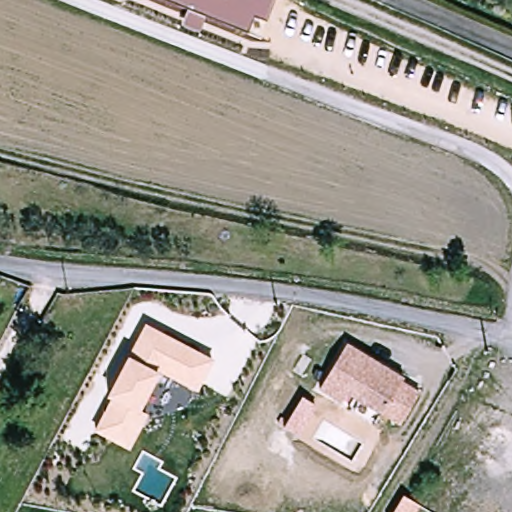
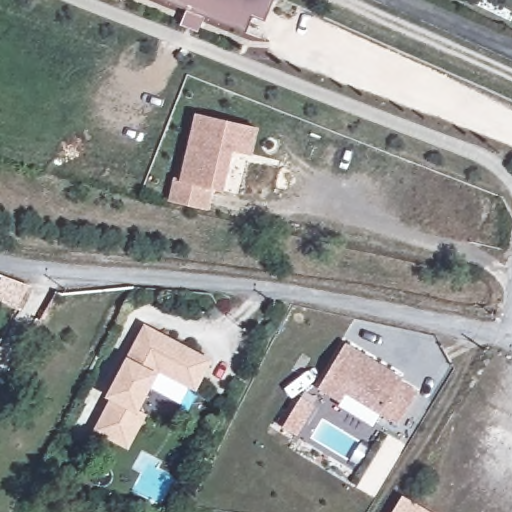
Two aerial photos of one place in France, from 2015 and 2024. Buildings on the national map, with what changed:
unchanged [(268,21),(253,16),(248,33),(205,16),(200,32),(181,25),(187,9),(167,0),(275,0),(268,21)]
new [(174,178),(180,180),(195,114),(258,129),(252,156),(233,152),(224,192),(213,189),(208,210),(168,202),(174,178)]
unchanged [(214,361),(198,393),(162,373),(142,411),(150,415),(130,450),(94,431),(145,324),(214,361)]
unchanged [(323,381),(342,341),(401,371),(400,374),(419,384),(408,406),(402,417),(348,390),(343,399),(319,387),(323,381)]
unchanged [(318,407),(300,438),(284,428),(302,396),(318,407)]
unchanged [(416,512),(393,512),(403,497),(419,506),(416,512)]

